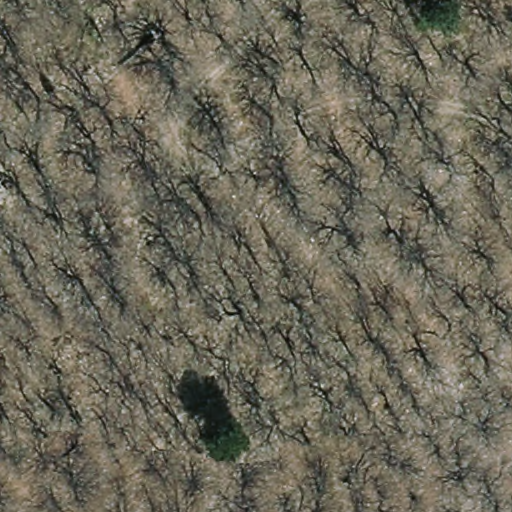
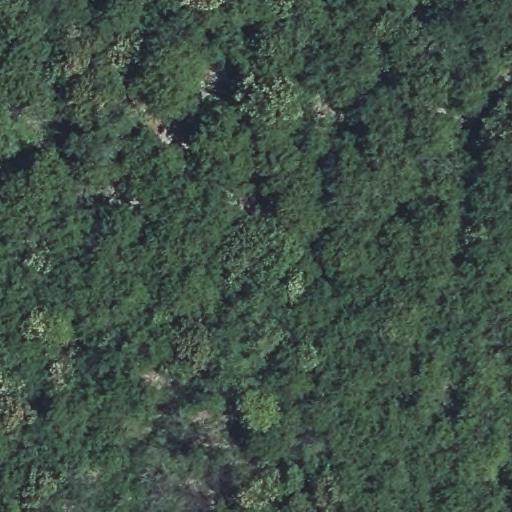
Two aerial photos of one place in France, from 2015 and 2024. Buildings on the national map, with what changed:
unchanged [(0,177),(0,172),(2,174),(0,177)]

